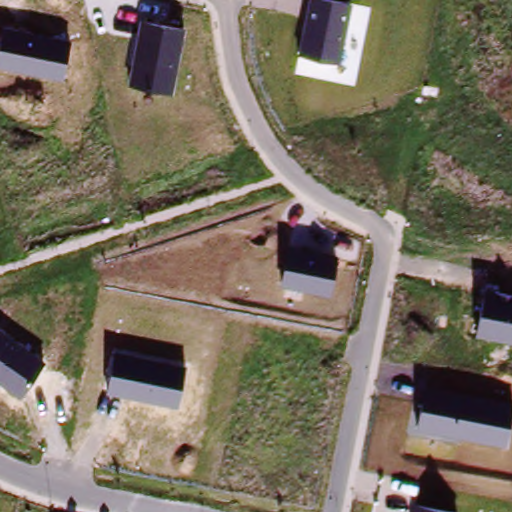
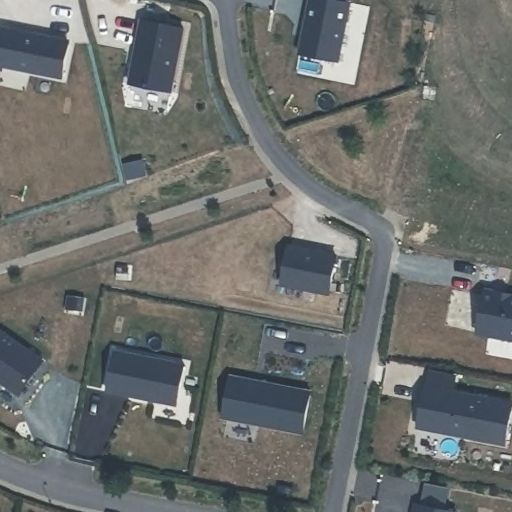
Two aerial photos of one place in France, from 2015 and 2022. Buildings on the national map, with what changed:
unchanged [(300,55),(309,0),(341,0),(352,2),(339,62),(300,55)]
unchanged [(172,92),(129,84),(141,20),(184,28),(172,92)]
unchanged [(63,78),(0,67),(0,48),(3,27),(69,40),(63,78)]
unchanged [(329,293),(282,285),(289,246),(336,254),(329,293)]
unchanged [(485,289),(512,294),(512,340),(478,334),(485,289)]
unchanged [(20,397),(0,382),(0,329),(45,359),(20,397)]
unchanged [(178,405),(107,392),(114,349),(186,363),(178,405)]
new [(313,390),(303,435),(221,418),(230,375),(313,390)]
unchanged [(418,428),(425,387),(512,402),(512,408),(506,444),(418,428)]
unchanged [(458,512),(416,512),(418,503),(458,511),(458,512)]

